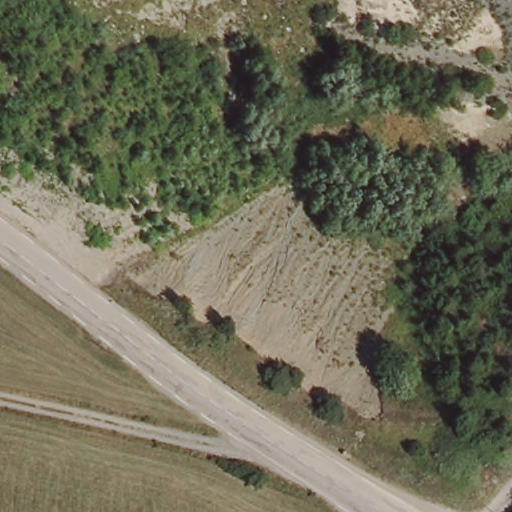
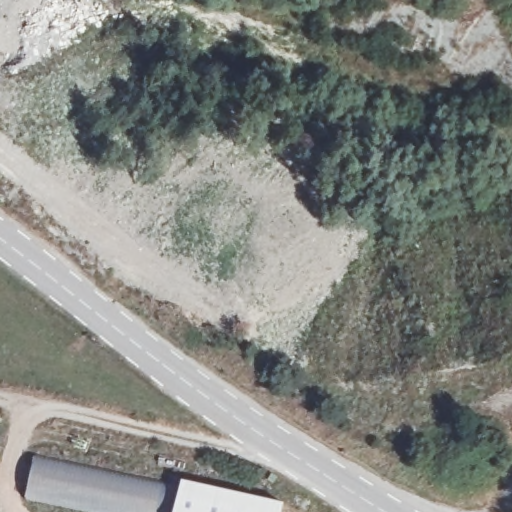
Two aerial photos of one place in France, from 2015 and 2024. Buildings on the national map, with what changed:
new [(35,461),(180,491),(175,512),(102,512),(27,497),(35,461)]
new [(279,500),(276,512),(175,512),(180,491),(181,479),(279,500)]

